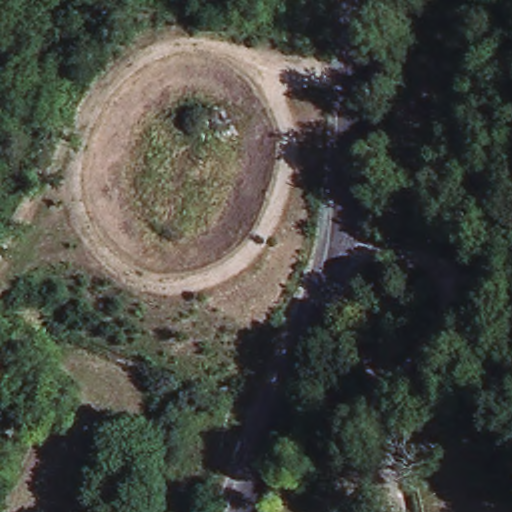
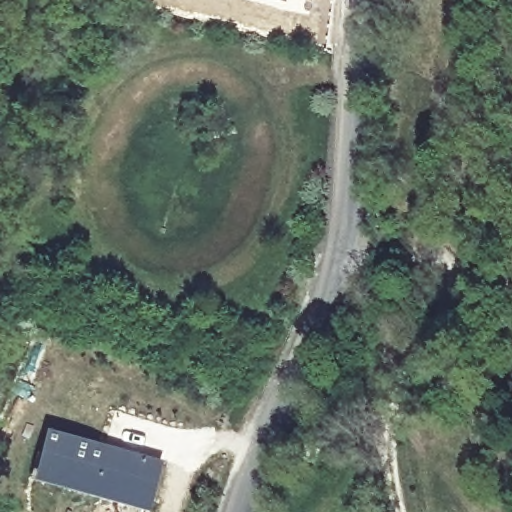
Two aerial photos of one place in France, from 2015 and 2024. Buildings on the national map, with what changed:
new [(275,0),(283,0),(283,2),(275,0)]
new [(34,479),(48,429),(163,461),(147,510),(34,479)]

